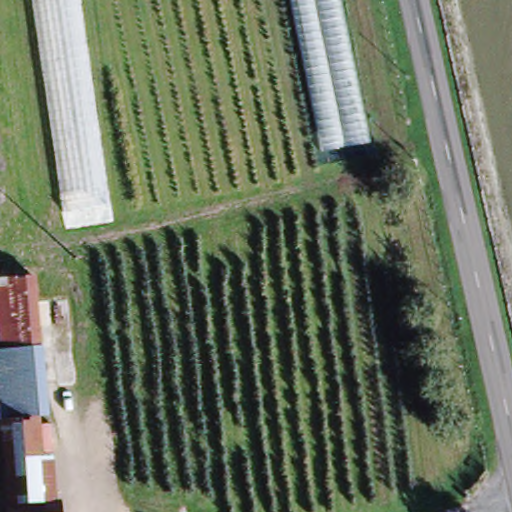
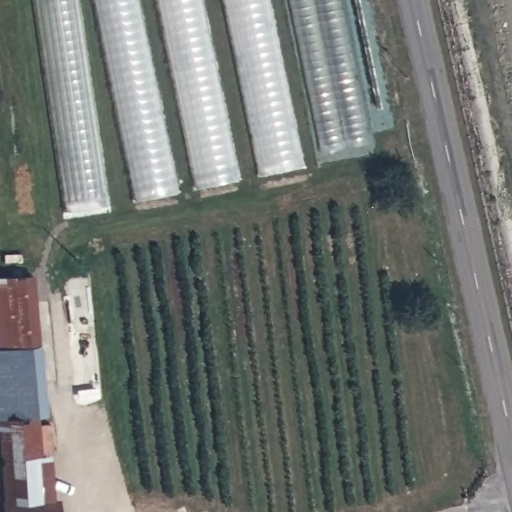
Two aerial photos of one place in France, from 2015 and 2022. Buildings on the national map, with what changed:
unchanged [(106,205),(67,211),(36,0),(77,0),(106,205)]
new [(180,191),(139,200),(99,0),(140,0),(180,191)]
new [(239,180),(195,189),(158,0),(201,0),(239,180)]
new [(303,162),(258,170),(224,0),(270,0),(303,162)]
unchanged [(370,144),(323,153),(290,0),(340,0),(370,144)]
unchanged [(37,341),(15,342),(13,281),(35,278),(37,341)]
unchanged [(44,402),(25,404),(8,405),(3,343),(15,342),(37,341),(39,356),(44,402)]
unchanged [(14,471),(7,414),(17,413),(17,420),(45,417),(49,468),(14,471)]
unchanged [(52,500),(17,502),(14,471),(49,468),(52,500)]
unchanged [(52,500),(67,498),(68,512),(18,512),(17,502),(52,500)]

